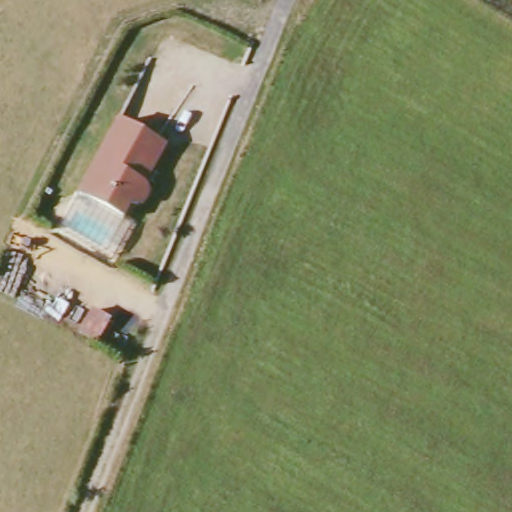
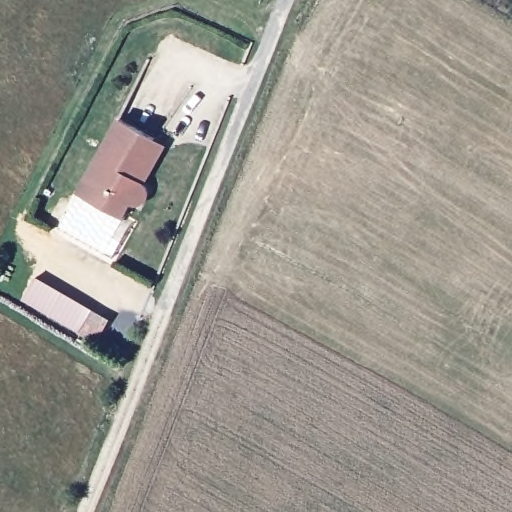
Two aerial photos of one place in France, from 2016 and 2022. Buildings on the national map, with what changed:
unchanged [(161,140),(146,165),(152,169),(143,183),(151,191),(152,194),(152,199),(149,203),(146,206),(142,207),(137,208),(134,207),(127,219),(82,193),(127,119),(161,140)]
new [(109,318),(95,342),(23,299),(36,276),(109,318)]
demolished [(99,309),(115,319),(102,341),(85,331),(99,309)]

